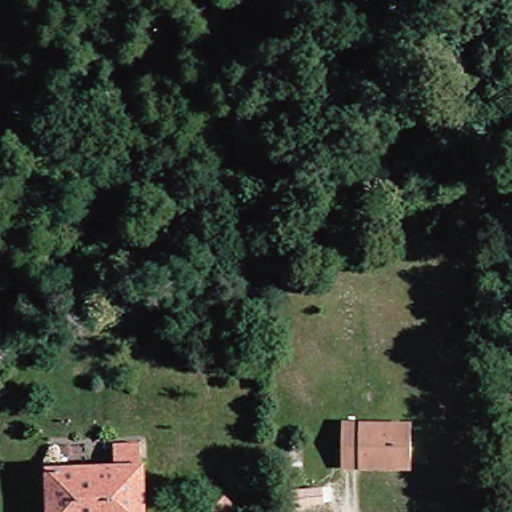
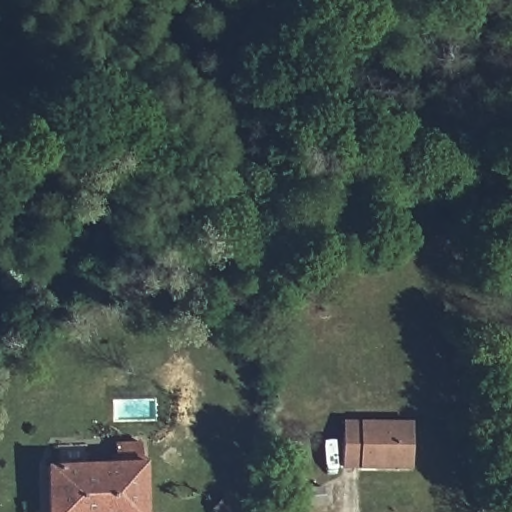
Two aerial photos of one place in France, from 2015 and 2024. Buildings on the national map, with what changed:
unchanged [(402,474),(351,471),(333,470),(337,425),(353,426),(406,430),(402,474)]
unchanged [(114,452),(137,452),(137,470),(141,470),(140,512),(41,512),(42,468),(114,470),(114,452)]
unchanged [(308,487),(338,485),(339,501),(308,502),(308,487)]

